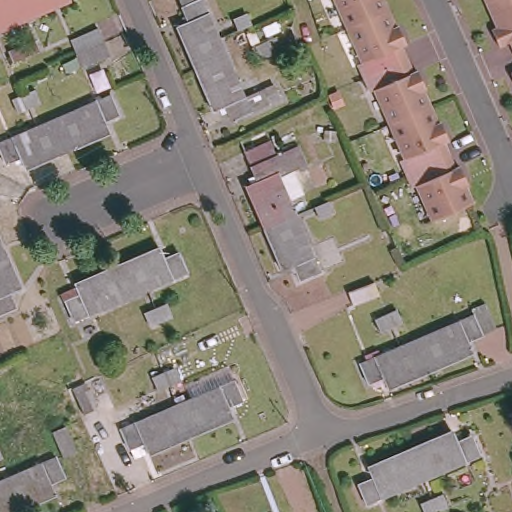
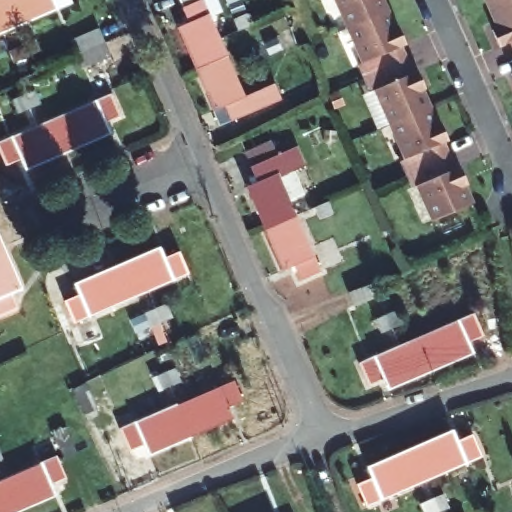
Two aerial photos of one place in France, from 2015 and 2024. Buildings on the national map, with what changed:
unchanged [(9,16),(25,9),(32,23),(0,37),(0,0),(3,0),(9,16)]
unchanged [(71,6),(32,23),(25,9),(9,16),(3,0),(69,0),(71,6)]
unchanged [(220,112),(211,115),(174,27),(182,23),(171,0),(203,0),(244,99),(274,87),(281,106),(227,125),(220,112)]
unchanged [(339,0),(384,0),(388,8),(350,25),(339,0)]
unchanged [(488,2),(488,0),(493,0),(488,2)]
unchanged [(501,44),(493,28),(503,24),(500,17),(495,19),(488,2),(493,0),(512,0),(512,41),(511,40),(501,44)]
unchanged [(365,76),(359,61),(365,59),(350,25),(388,8),(395,25),(400,24),(407,41),(403,43),(408,57),(365,76)]
unchanged [(243,27),(240,28),(235,16),(247,11),(253,23),(243,27)]
unchanged [(35,36),(40,48),(15,57),(10,46),(22,41),(35,36)]
unchanged [(392,121),(376,85),(371,88),(365,76),(408,57),(415,70),(418,68),(426,86),(422,88),(430,105),(392,121)]
unchanged [(16,97),(27,92),(36,87),(43,100),(32,105),(21,110),(16,97)]
unchanged [(116,117),(102,124),(107,135),(66,153),(58,136),(67,133),(75,129),(69,114),(107,98),(116,117)]
unchanged [(407,171),(401,156),(406,154),(392,121),(430,105),(437,122),(441,120),(450,138),(445,139),(450,152),(407,171)]
unchanged [(69,114),(75,129),(67,133),(58,136),(66,153),(23,171),(18,160),(4,167),(0,157),(0,145),(36,129),(52,122),(69,114)]
unchanged [(320,266),(300,274),(295,260),(282,264),(265,222),(247,180),(257,175),(252,161),(247,149),(268,141),(272,153),(273,156),(297,147),(305,165),(281,174),(289,192),(296,208),(320,266)]
unchanged [(456,166),(460,164),(468,181),(464,183),(472,201),(434,217),(418,181),(413,184),(407,171),(450,152),(456,166)]
unchanged [(322,216),(317,204),(329,199),(333,211),(322,216)]
unchanged [(156,249),(161,260),(175,254),(185,275),(146,292),(145,293),(140,279),(122,287),(114,268),(156,249)]
unchanged [(1,254),(0,255),(0,252),(1,254)]
unchanged [(19,296),(8,301),(15,316),(0,323),(0,255),(1,254),(19,296)]
unchanged [(143,293),(128,300),(72,325),(62,303),(78,296),(73,286),(114,268),(122,287),(140,279),(145,293),(143,293)]
unchanged [(147,312),(159,306),(170,301),(175,314),(165,319),(153,324),(147,312)]
unchanged [(375,317),(386,313),(398,308),(403,321),(391,325),(380,330),(375,317)]
unchanged [(475,318),(483,337),(468,343),(473,356),(430,373),(423,356),(407,362),(401,348),(418,342),(475,318)]
unchanged [(401,348),(407,362),(423,356),(430,373),(388,391),(384,379),(368,385),(360,366),(400,349),(401,348)]
unchanged [(153,379),(164,374),(175,369),(181,381),(170,386),(158,391),(153,379)]
unchanged [(185,420),(167,428),(161,415),(179,407),(235,383),(243,402),(230,408),(235,420),(192,438),(185,420)]
unchanged [(167,428),(185,420),(192,438),(152,456),(146,444),(132,451),(123,431),(161,415),(167,428)]
unchanged [(457,449),(471,443),(480,463),(440,480),(435,467),(431,468),(419,474),(411,457),(452,439),(457,449)]
unchanged [(0,489),(0,473),(53,449),(61,469),(46,476),(51,487),(10,506),(5,497),(2,488),(0,489)]
unchanged [(1,458),(0,459),(0,456),(1,458)]
unchanged [(368,512),(360,492),(373,486),(369,475),(411,457),(419,474),(431,468),(435,467),(440,480),(424,487),(368,512)]
unchanged [(2,488),(5,497),(10,506),(0,510),(0,489),(2,488)]
unchanged [(420,501),(432,495),(442,491),(446,501),(436,506),(424,511),(420,501)]

